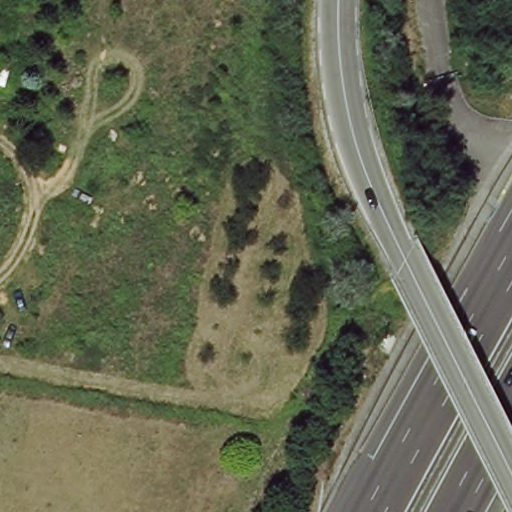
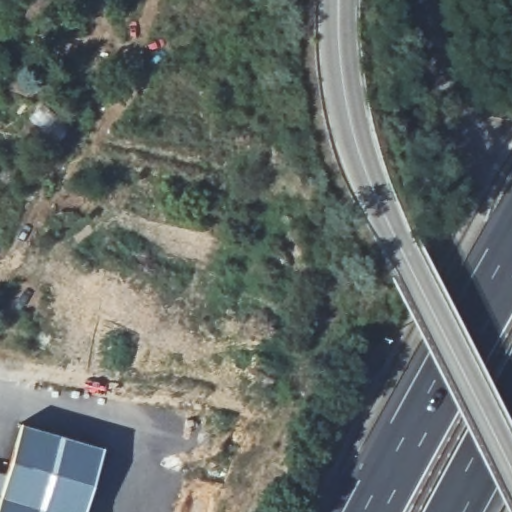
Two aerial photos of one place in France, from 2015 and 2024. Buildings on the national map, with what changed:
new [(0,497),(0,472),(6,473),(21,424),(102,448),(84,512),(0,512),(0,499),(1,497),(0,497)]

